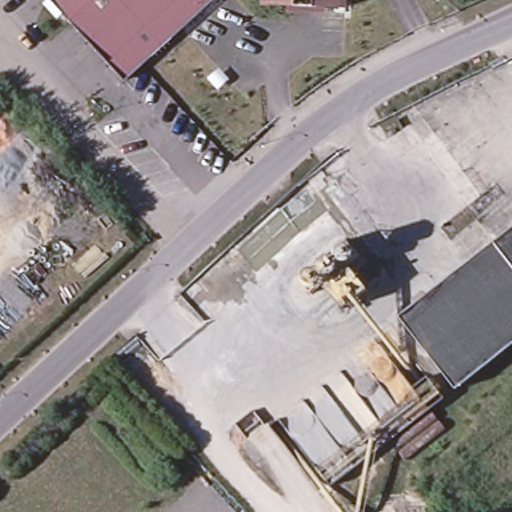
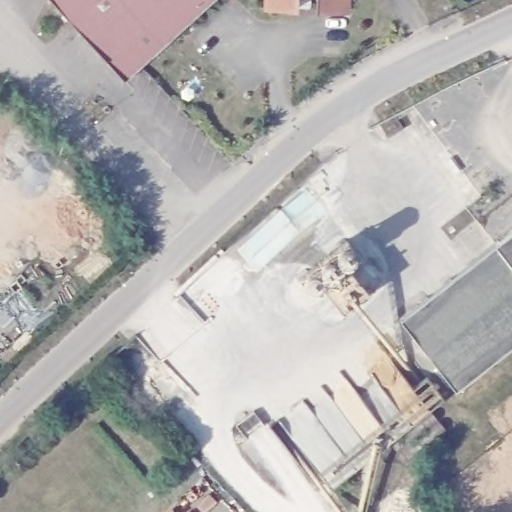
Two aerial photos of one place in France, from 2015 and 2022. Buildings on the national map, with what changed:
unchanged [(45,0),(170,0),(102,63),(45,0)]
unchanged [(207,0),(119,81),(102,63),(170,0),(207,0)]
unchanged [(340,0),(340,7),(265,3),(266,0),(340,0)]
unchanged [(455,387),(400,315),(512,228),(512,342),(455,387)]
unchanged [(295,281),(348,239),(360,259),(355,273),(367,294),(336,310),(320,294),(310,298),(295,281)]

